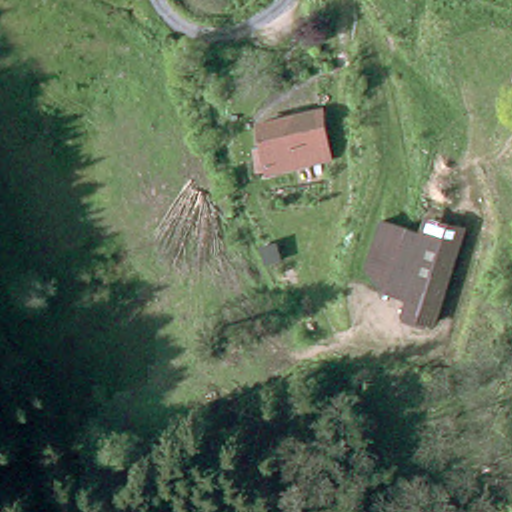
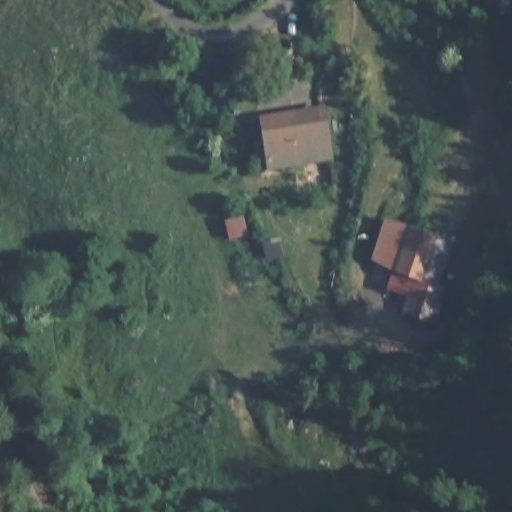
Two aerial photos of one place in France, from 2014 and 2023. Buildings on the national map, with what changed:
unchanged [(258,111),(317,100),(323,164),(262,172),(258,111)]
unchanged [(416,228),(424,208),(465,222),(438,328),(395,318),(400,299),(362,265),(379,215),(416,228)]

